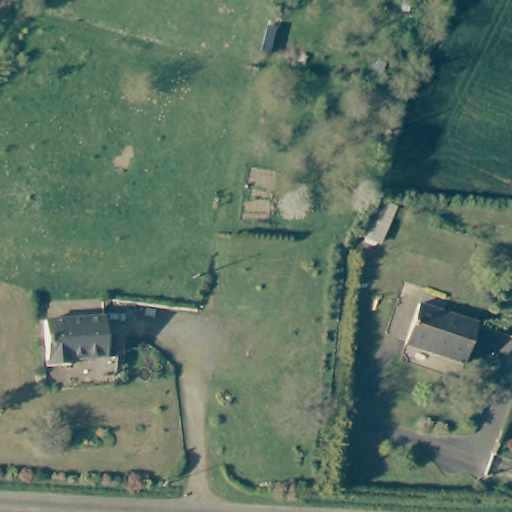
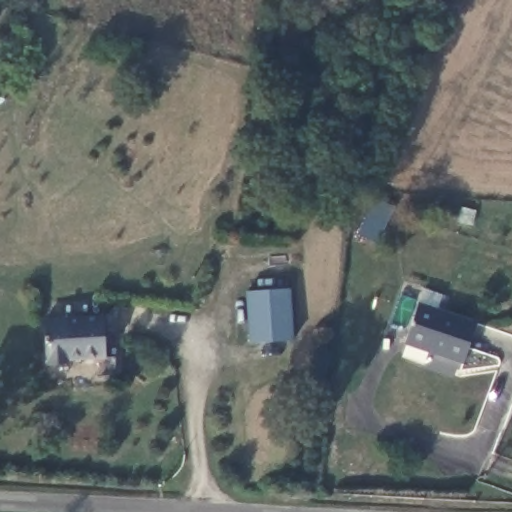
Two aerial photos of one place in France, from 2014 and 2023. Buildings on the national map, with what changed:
new [(256,342),(252,295),(291,291),(296,338),(256,342)]
unchanged [(424,303),(484,323),(470,363),(436,351),(437,347),(410,338),(424,303)]
unchanged [(112,355),(74,357),(75,363),(53,365),(50,320),(110,315),(112,355)]

